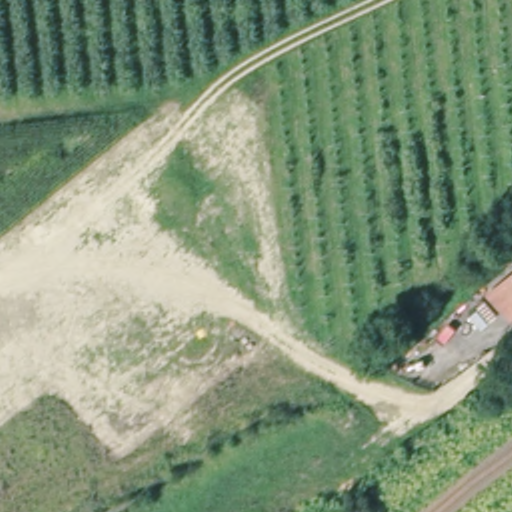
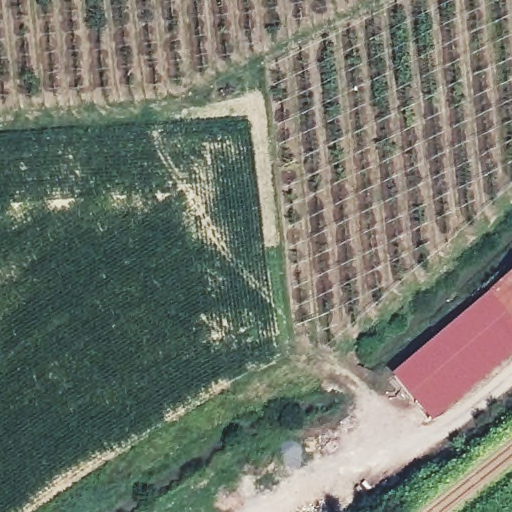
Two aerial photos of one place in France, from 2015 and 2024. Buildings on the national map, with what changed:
new [(431,421),(391,373),(487,292),(502,280),(512,272),(512,319),(511,320),(512,321),(512,352),(431,421)]
demolished [(512,272),(512,292),(502,280),(512,272)]

